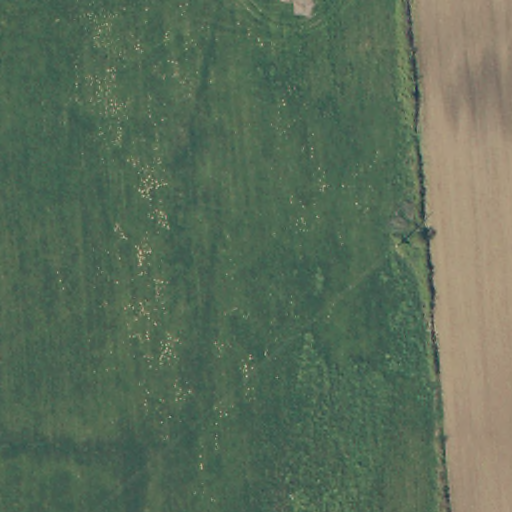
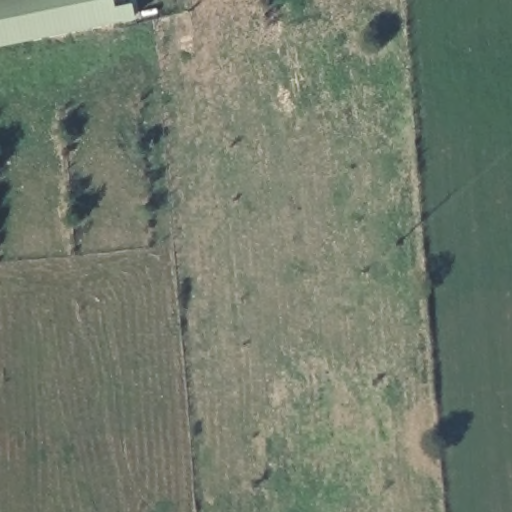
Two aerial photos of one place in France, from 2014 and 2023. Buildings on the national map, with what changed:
new [(115,6),(134,2),(136,20),(0,49),(0,0),(114,0),(115,6)]

